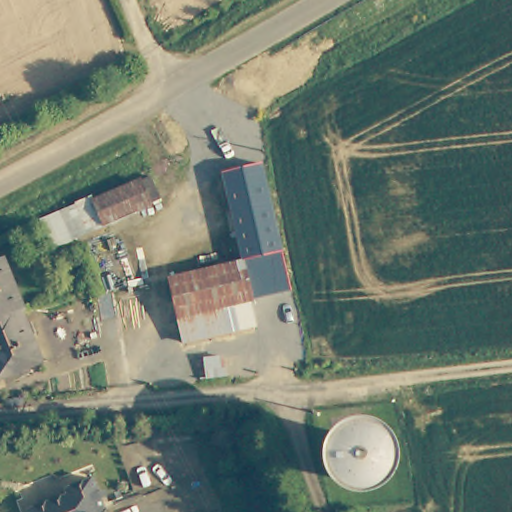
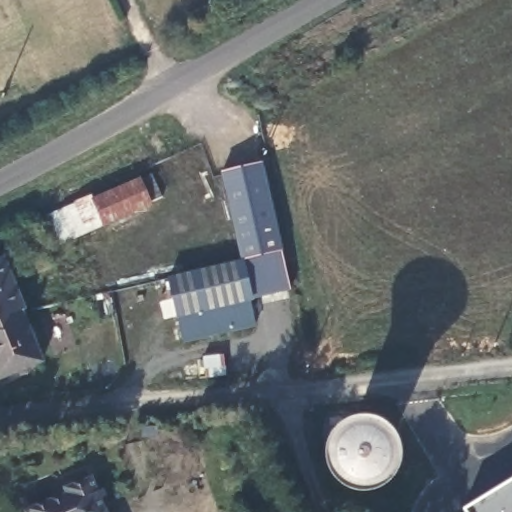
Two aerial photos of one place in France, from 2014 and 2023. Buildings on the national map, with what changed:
unchanged [(249,289),(242,261),(221,172),(262,162),(291,292),(251,302),(249,289)]
unchanged [(41,220),(74,206),(77,202),(91,197),(97,198),(142,179),(150,205),(77,237),(52,247),(41,220)]
unchanged [(27,312),(0,323),(0,263),(7,260),(27,312)]
unchanged [(253,314),(234,320),(236,330),(185,342),(172,292),(169,278),(216,267),(240,262),(242,261),(249,289),(253,314)]
unchanged [(2,381),(0,376),(0,323),(27,312),(30,311),(47,363),(2,381)]
unchanged [(205,358),(225,357),(227,376),(206,378),(205,358)]
unchanged [(65,495),(66,490),(92,478),(106,512),(25,512),(65,495)]
new [(463,511),(512,481),(512,512),(463,512),(463,511)]

